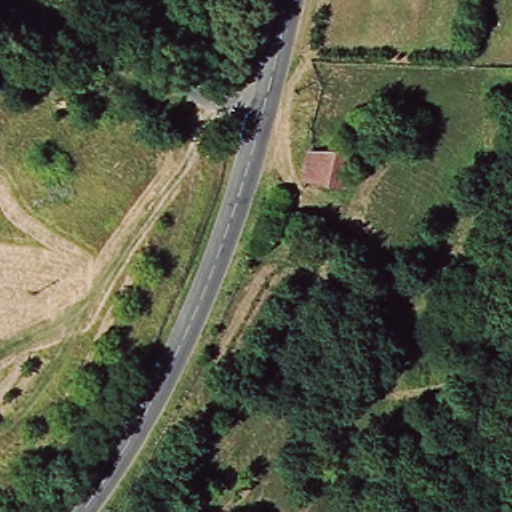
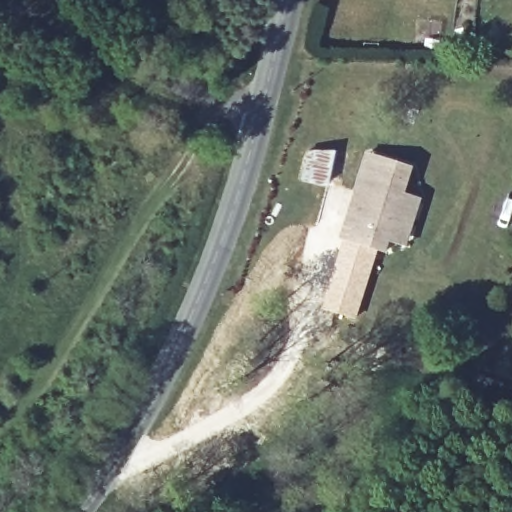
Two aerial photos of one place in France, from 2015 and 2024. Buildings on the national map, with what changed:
new [(368,151),(413,167),(405,193),(422,197),(408,247),(389,242),(387,251),(341,238),(368,151)]
unchanged [(308,181),(314,154),(338,155),(353,155),(346,184),(329,180),(327,185),(308,181)]

